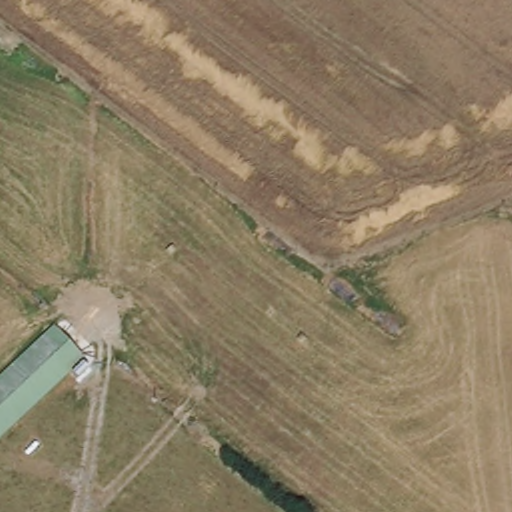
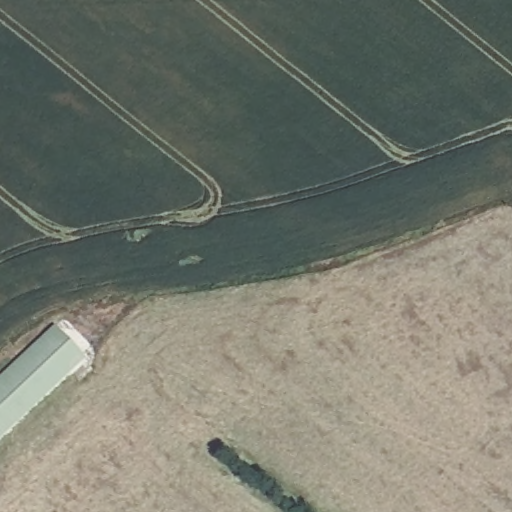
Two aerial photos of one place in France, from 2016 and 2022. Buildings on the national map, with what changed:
unchanged [(57,322),(87,352),(0,435),(0,375),(57,322)]

